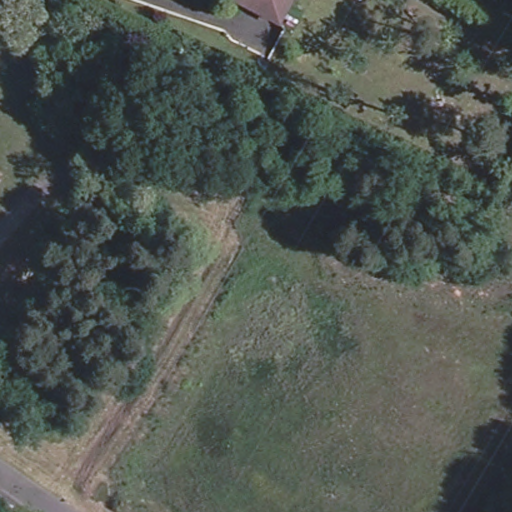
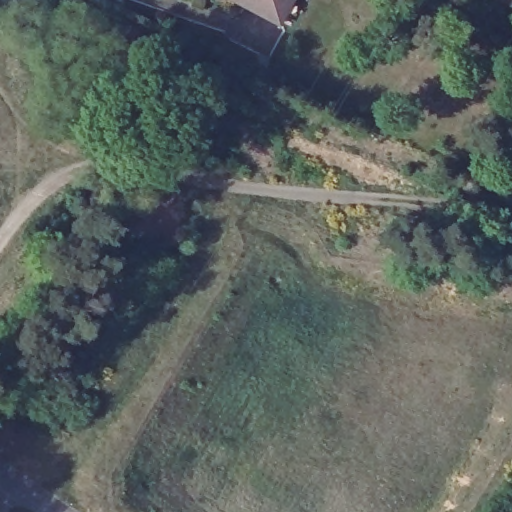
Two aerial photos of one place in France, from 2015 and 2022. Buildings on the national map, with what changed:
unchanged [(282,5),(272,23),(230,1),(231,0),(298,0),(292,11),(282,5)]

